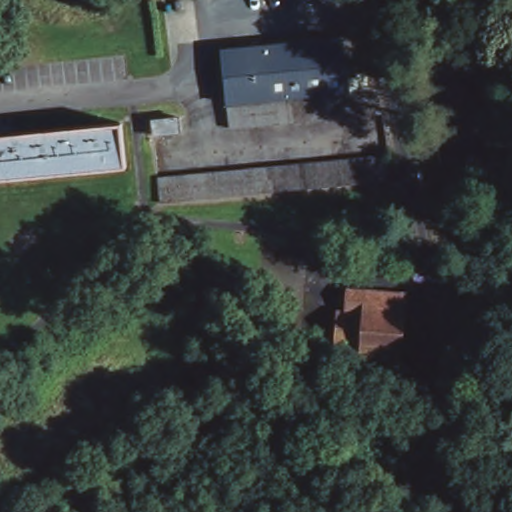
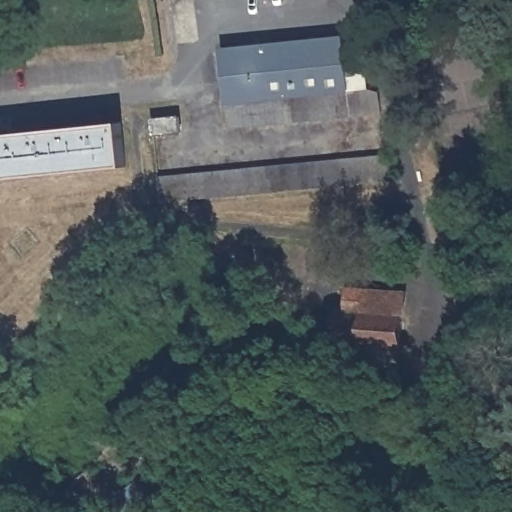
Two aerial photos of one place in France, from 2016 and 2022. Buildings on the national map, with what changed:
unchanged [(345,32),(351,86),(372,84),(374,110),(231,125),(223,48),(345,32)]
unchanged [(183,117),(184,132),(162,134),(161,119),(183,117)]
unchanged [(119,121),(124,167),(0,179),(0,134),(119,121)]
unchanged [(385,180),(155,203),(153,176),(383,151),(385,180)]
unchanged [(349,312),(352,289),(406,294),(399,370),(344,365),(346,343),(338,342),(341,312),(349,312)]

